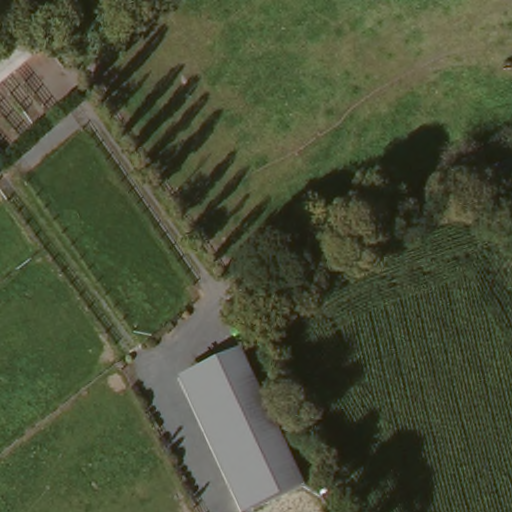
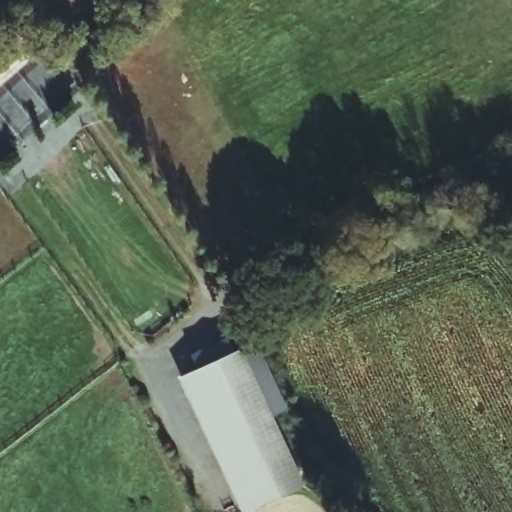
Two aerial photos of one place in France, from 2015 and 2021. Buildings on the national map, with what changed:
unchanged [(44,43),(0,80),(0,48),(28,26),(44,43)]
unchanged [(241,512),(176,379),(242,346),(308,484),(246,512),(241,512)]

